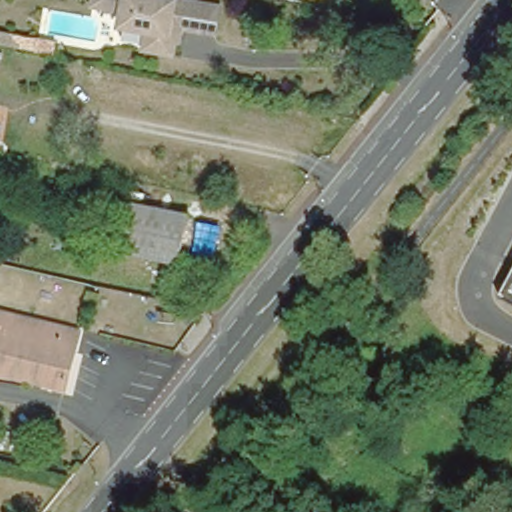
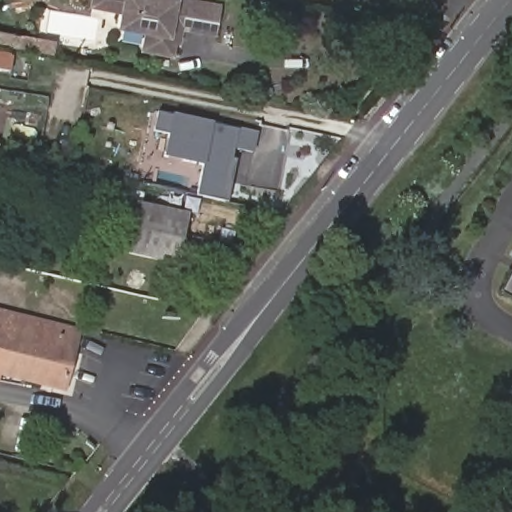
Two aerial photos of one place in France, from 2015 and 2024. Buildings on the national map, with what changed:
unchanged [(176,25),(174,35),(127,26),(131,0),(176,0),(192,3),(187,29),(176,25)]
unchanged [(47,52),(0,42),(0,32),(49,41),(47,52)]
new [(158,110),(257,132),(254,150),(231,146),(229,155),(237,158),(228,200),(197,193),(204,164),(164,155),(169,133),(154,130),(158,110)]
unchanged [(191,261),(133,249),(144,200),(202,212),(191,261)]
unchanged [(512,270),(512,295),(502,290),(512,270)]
unchanged [(1,380),(0,379),(0,311),(83,333),(69,390),(51,385),(2,373),(1,380)]

